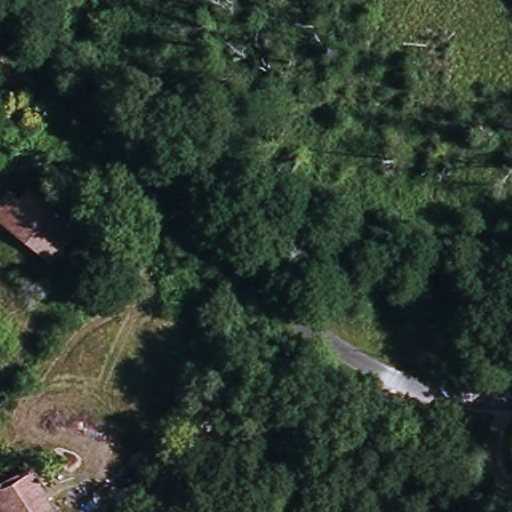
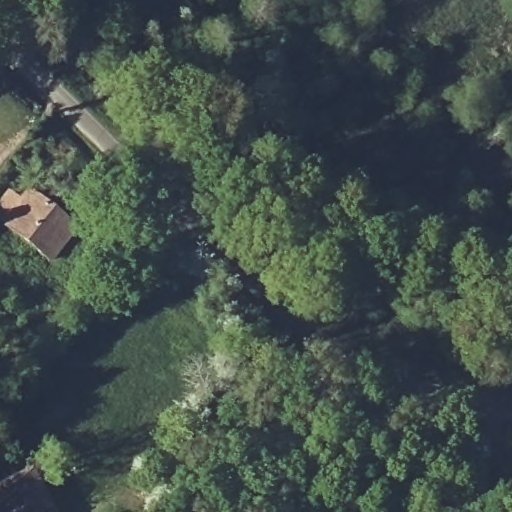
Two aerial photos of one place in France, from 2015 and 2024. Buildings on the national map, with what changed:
unchanged [(47,266),(0,229),(0,203),(3,200),(15,208),(22,199),(70,236),(47,266)]
unchanged [(35,477),(53,512),(0,512),(0,495),(35,477)]

